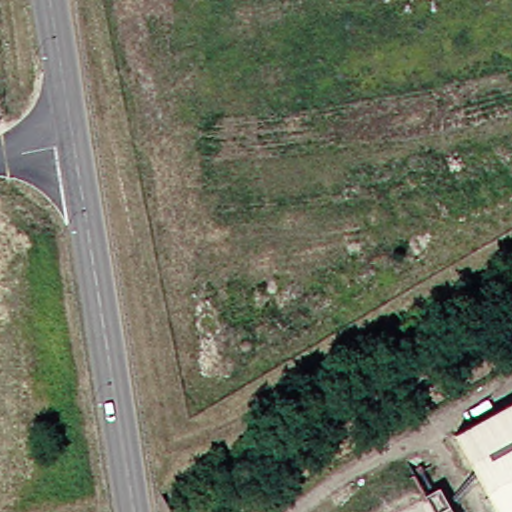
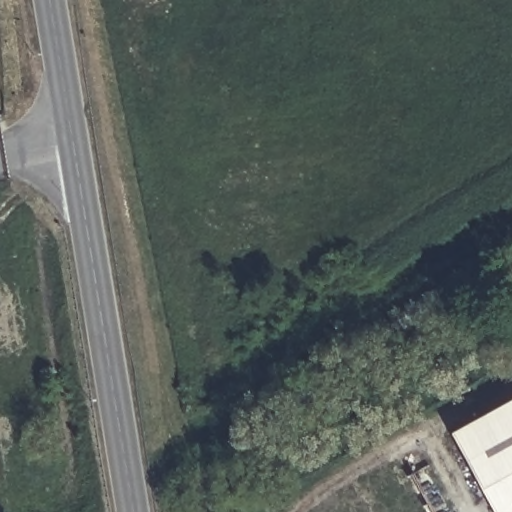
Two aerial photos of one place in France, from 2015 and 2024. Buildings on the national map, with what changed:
unchanged [(512,401),(512,512),(498,512),(452,435),(512,401)]

